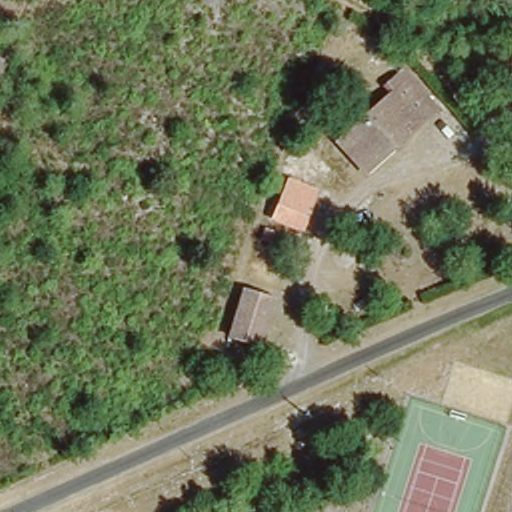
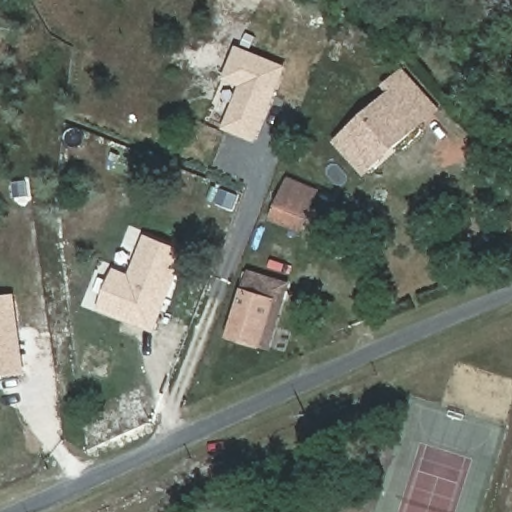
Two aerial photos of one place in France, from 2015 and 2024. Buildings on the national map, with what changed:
new [(288,67),(257,144),(222,130),(239,87),(222,80),(237,46),(288,67)]
unchanged [(356,162),(334,136),(391,89),(385,81),(402,69),(436,107),(390,144),(361,168),(356,162)]
new [(270,219),(288,177),(320,190),(303,232),(270,219)]
new [(155,334),(97,311),(103,295),(95,292),(101,278),(109,282),(114,269),(129,274),(145,234),(188,252),(155,334)]
new [(274,301),(242,290),(248,270),(290,282),(270,350),(259,346),(274,301)]
unchanged [(274,301),(259,346),(227,335),(242,290),(274,301)]
new [(16,294),(26,374),(0,378),(0,296),(16,294)]

